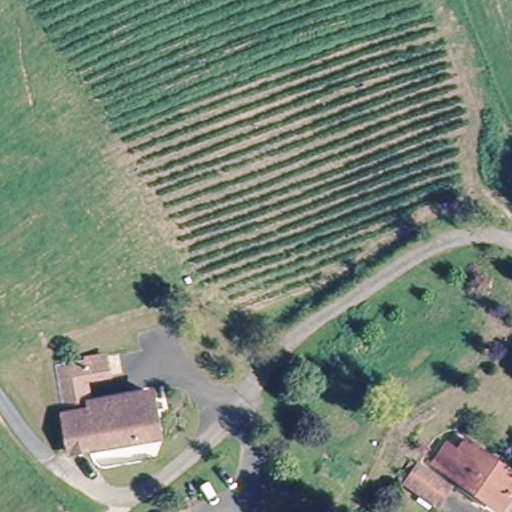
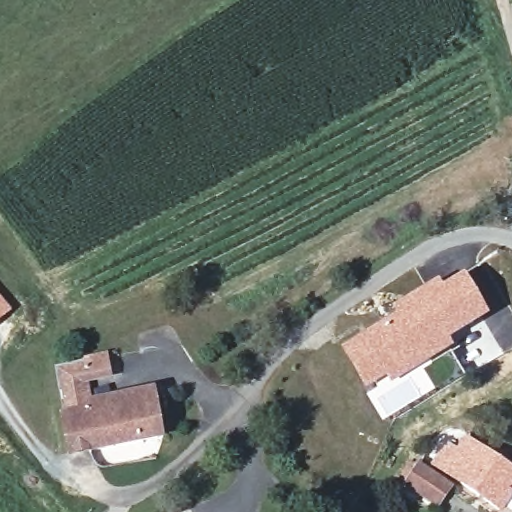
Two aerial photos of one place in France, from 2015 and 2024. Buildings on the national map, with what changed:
new [(393,314),(391,311),(438,281),(442,287),(465,274),(489,316),(450,341),(454,348),(390,385),(386,379),(365,390),(342,350),(393,314)]
new [(0,322),(0,297),(12,312),(0,322)]
unchanged [(91,404),(151,393),(160,440),(68,454),(55,365),(86,360),(106,358),(109,372),(88,376),(86,376),(91,404)]
unchanged [(506,499),(496,512),(492,512),(434,467),(447,450),(453,454),(466,440),(512,475),(512,504),(506,499)]
unchanged [(402,487),(416,470),(442,490),(428,508),(402,487)]

